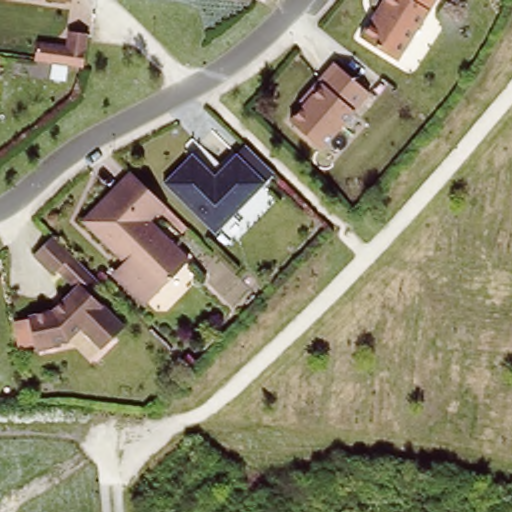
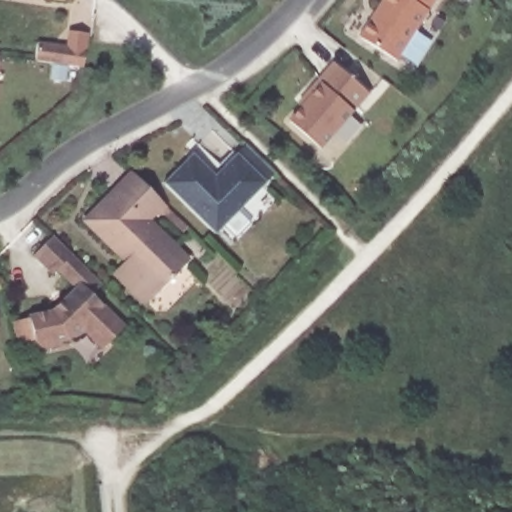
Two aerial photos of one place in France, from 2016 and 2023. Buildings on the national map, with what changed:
unchanged [(431,0),(392,59),(358,35),(381,0),(431,0)]
unchanged [(36,40),(69,46),(70,27),(84,30),(82,64),(34,57),(36,40)]
unchanged [(304,100),(331,66),(368,95),(321,152),(289,126),(308,103),(304,100)]
unchanged [(189,154),(213,173),(240,144),(269,171),(213,234),(162,181),(189,154)]
unchanged [(130,169),(168,207),(153,224),(187,257),(141,305),(108,276),(121,260),(81,222),(130,169)]
unchanged [(53,272),(33,254),(51,235),(71,255),(53,272)]
unchanged [(50,310),(76,282),(122,326),(100,347),(78,325),(65,338),(57,340),(57,345),(32,350),(26,315),(50,310)]

